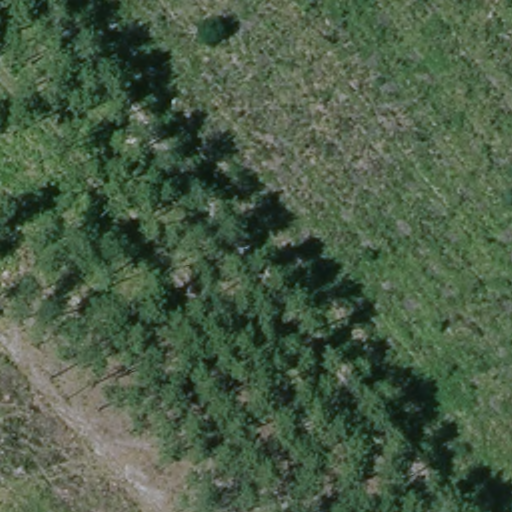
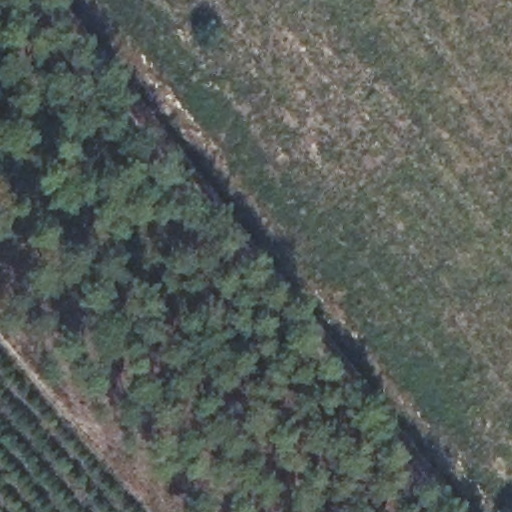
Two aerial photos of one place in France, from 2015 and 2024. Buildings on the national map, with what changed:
[]

